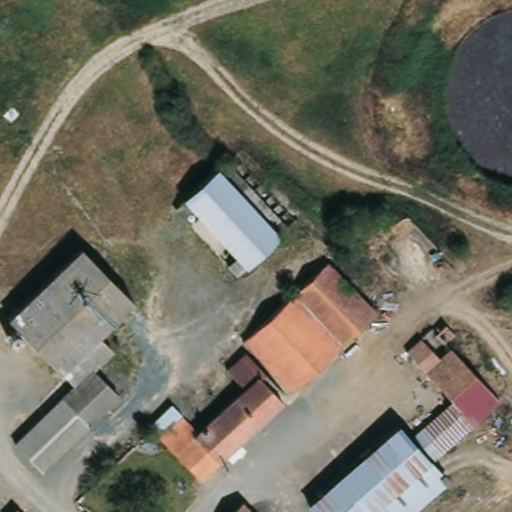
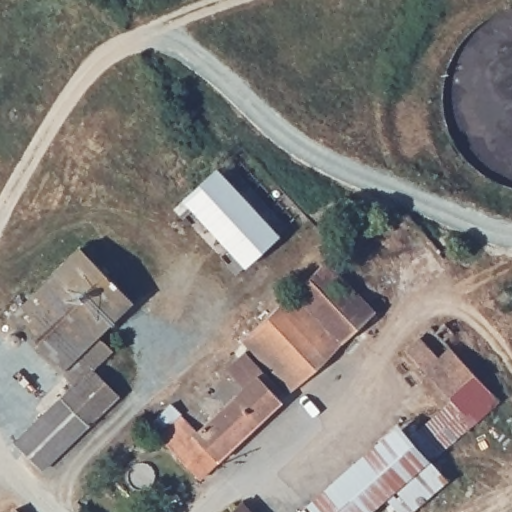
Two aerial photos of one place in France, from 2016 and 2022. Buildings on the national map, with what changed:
unchanged [(219,166),(281,232),(231,278),(223,270),(233,262),(188,212),(178,221),(168,211),(219,166)]
unchanged [(81,247),(133,301),(97,334),(111,350),(94,368),(119,393),(43,469),(16,442),(75,384),(9,316),(23,302),(81,247)]
unchanged [(311,280),(324,266),(373,318),(291,395),(243,344),(311,280)]
unchanged [(454,333),(443,343),(433,333),(444,323),(454,333)]
unchanged [(409,438),(451,401),(403,351),(418,337),(439,358),(449,348),(498,400),(432,462),(428,458),(409,438)]
unchanged [(201,482),(157,440),(159,438),(152,431),(150,428),(169,408),(173,411),(180,418),(197,434),(243,392),(225,374),(244,357),(285,401),(201,482)]
unchanged [(367,512),(316,512),(307,503),(397,423),(409,438),(428,458),(367,512)]
unchanged [(432,462),(447,481),(412,512),(367,512),(428,458),(432,462)]
unchanged [(241,502),(251,512),(230,512),(241,502)]
unchanged [(18,507),(23,512),(14,512),(18,507)]

